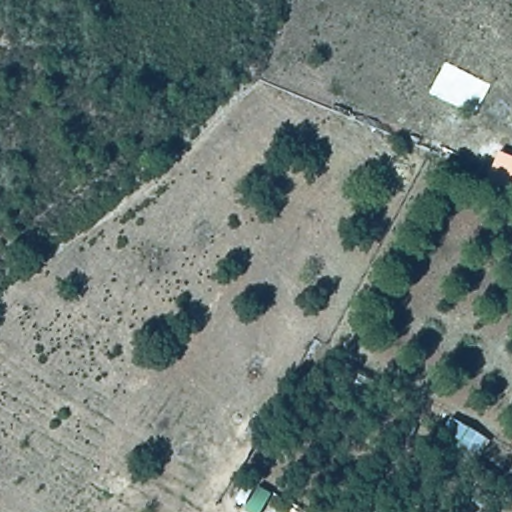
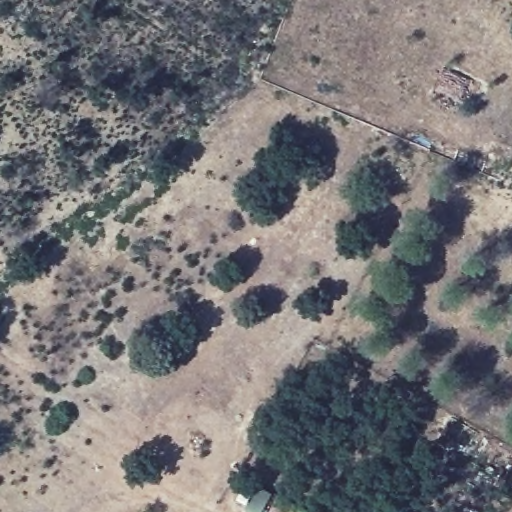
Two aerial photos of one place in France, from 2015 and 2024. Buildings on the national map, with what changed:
unchanged [(485,442),(473,463),(437,444),(447,422),(485,442)]

